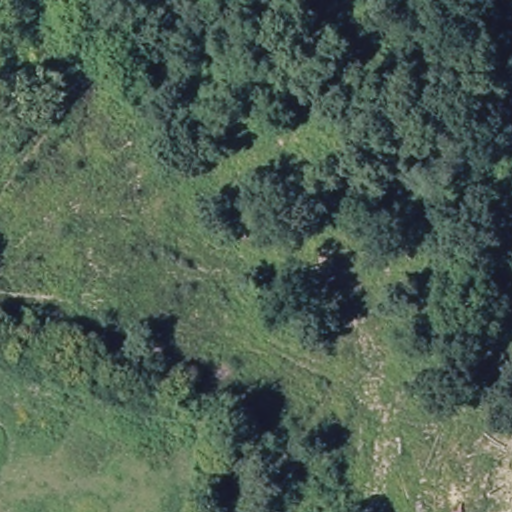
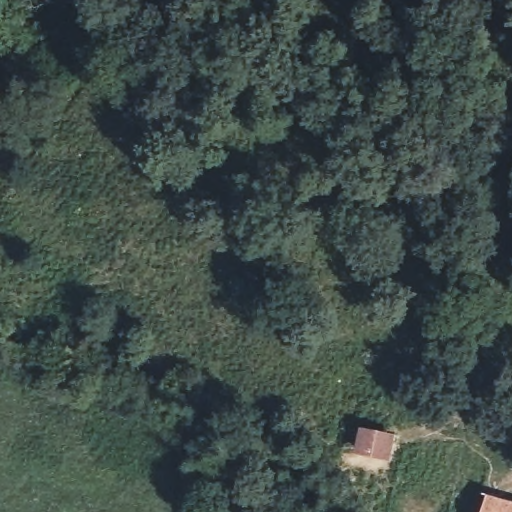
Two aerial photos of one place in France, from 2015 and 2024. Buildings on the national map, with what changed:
new [(397,434),(391,462),(354,455),(360,427),(397,434)]
new [(512,501),(512,512),(481,512),(486,494),(512,501)]

